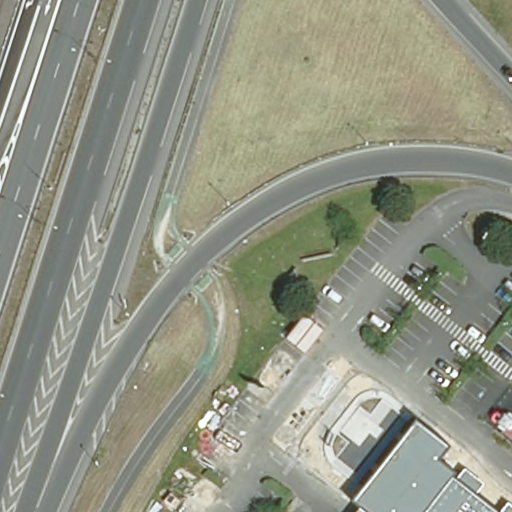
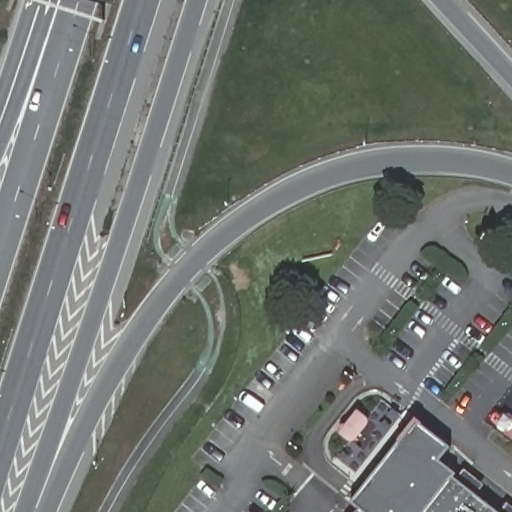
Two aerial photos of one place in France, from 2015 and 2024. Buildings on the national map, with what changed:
unchanged [(351,509),(416,425),(467,465),(453,483),(490,512),(354,512),(351,509)]

